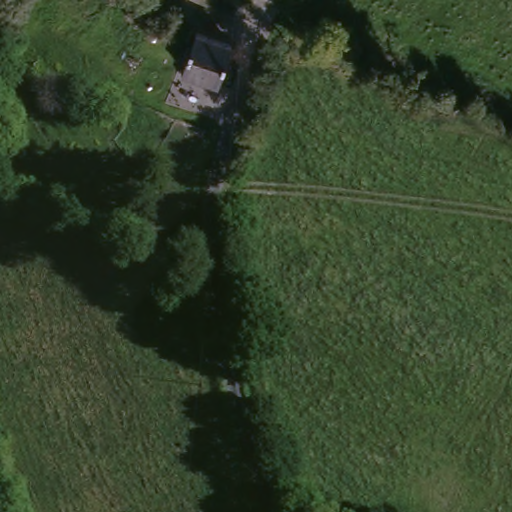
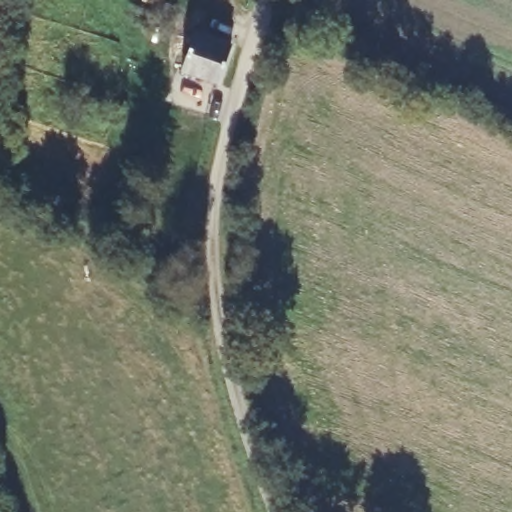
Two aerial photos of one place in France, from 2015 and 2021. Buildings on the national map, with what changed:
unchanged [(222,92),(185,79),(198,41),(234,54),(222,92)]

